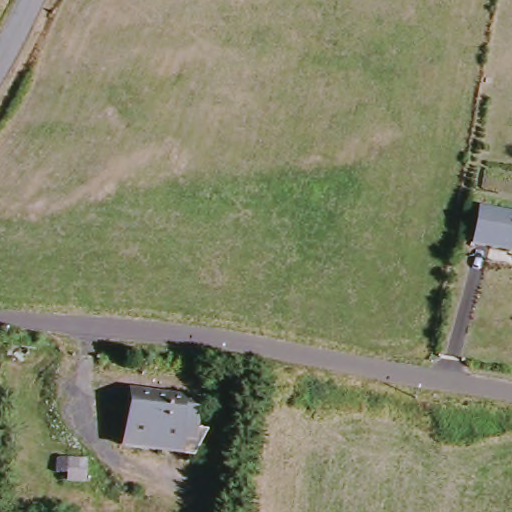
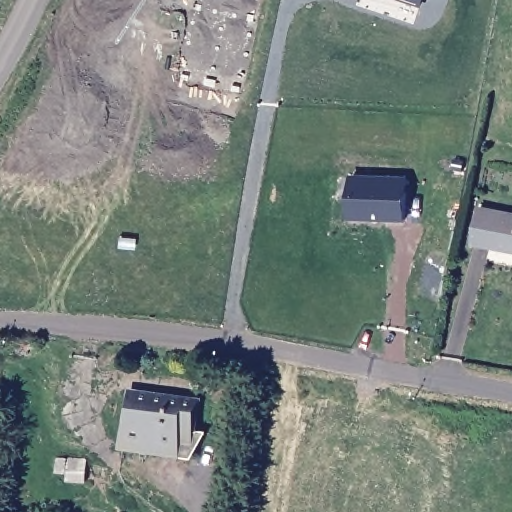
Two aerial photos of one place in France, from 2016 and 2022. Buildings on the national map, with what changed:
new [(401,0),(423,0),(421,6),(401,0)]
new [(349,219),(350,174),(407,177),(406,222),(349,219)]
unchanged [(512,216),(512,252),(475,245),(481,210),(512,216)]
unchanged [(191,432),(201,434),(191,455),(122,448),(127,393),(194,399),(191,432)]
unchanged [(71,474),(59,474),(60,459),(90,459),(90,482),(71,481),(71,474)]

